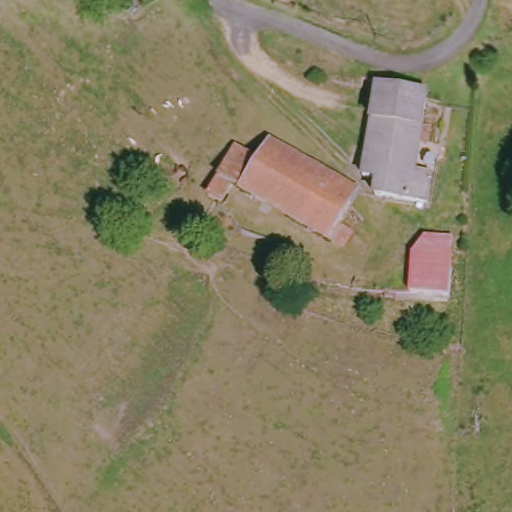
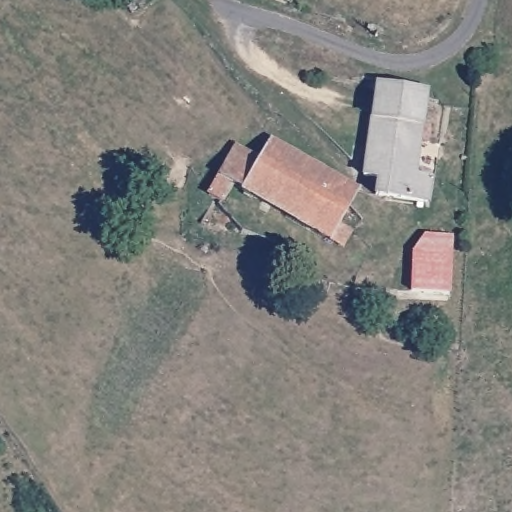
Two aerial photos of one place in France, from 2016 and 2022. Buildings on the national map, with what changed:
unchanged [(376,198),(377,180),(364,178),(374,96),(418,102),(419,132),(416,175),(430,176),(427,202),(376,198)]
unchanged [(258,157),(269,137),(357,188),(338,223),(353,231),(344,249),(232,184),(220,198),(209,192),(235,144),(258,157)]
unchanged [(412,295),(414,245),(425,233),(457,236),(452,298),(412,295)]

